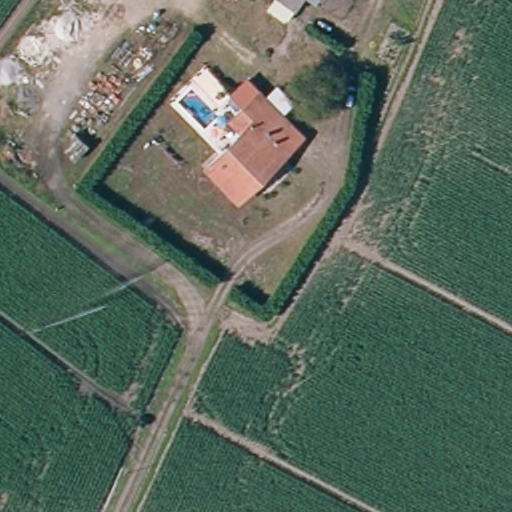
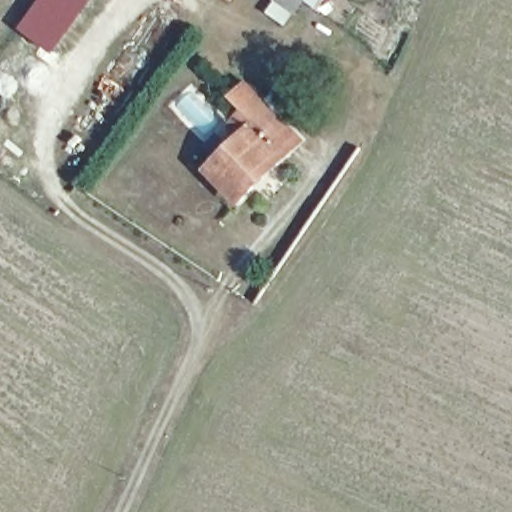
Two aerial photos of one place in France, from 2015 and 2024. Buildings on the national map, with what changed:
new [(24,30),(45,0),(95,0),(57,55),(24,30)]
unchanged [(271,7),(276,0),(306,0),(290,21),(271,7)]
unchanged [(314,0),(321,0),(319,3),(314,0)]
unchanged [(253,188),(238,202),(208,171),(243,136),(232,125),(259,99),(288,129),(301,141),(253,188)]

